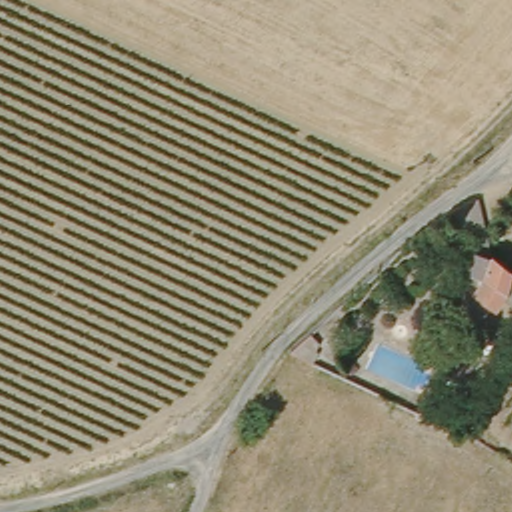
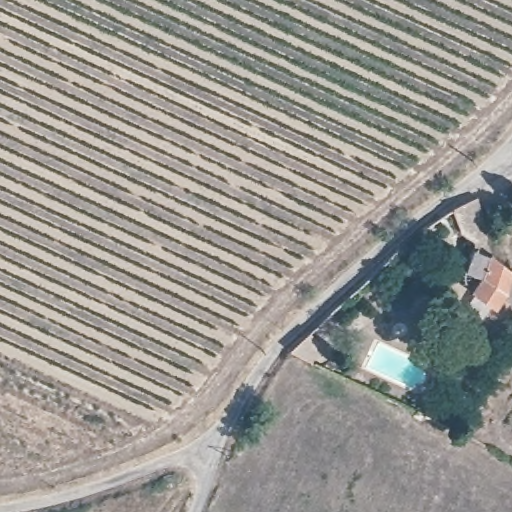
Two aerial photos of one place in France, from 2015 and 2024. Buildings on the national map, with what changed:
unchanged [(512,265),(512,309),(508,314),(484,300),(492,287),(477,277),(489,254),(472,258),(465,215),(469,212),(493,207),(501,257),(512,265)]

